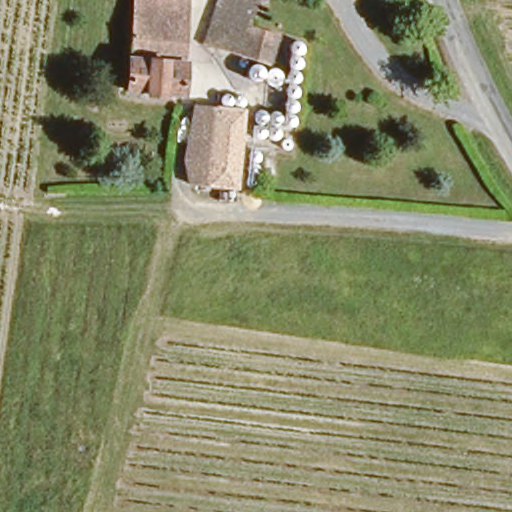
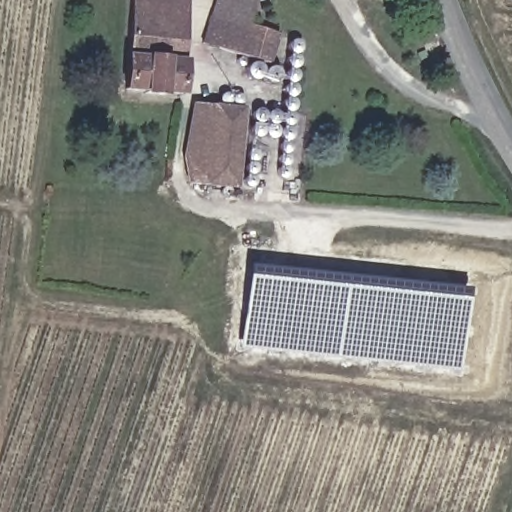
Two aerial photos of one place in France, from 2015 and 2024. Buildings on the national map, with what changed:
unchanged [(129,0),(185,0),(180,102),(164,98),(164,102),(145,101),(144,98),(121,96),(129,0)]
unchanged [(270,64),(269,66),(262,64),(199,45),(210,0),(262,0),(254,26),(279,33),(270,64)]
unchanged [(278,111),(280,95),(255,82),(262,64),(269,66),(270,64),(277,65),(299,70),(291,152),(259,151),(258,180),(239,179),(247,108),(278,111)]
unchanged [(239,179),(238,190),(189,186),(180,158),(188,105),(247,108),(239,179)]
new [(461,372),(239,348),(248,266),(469,288),(461,372)]

